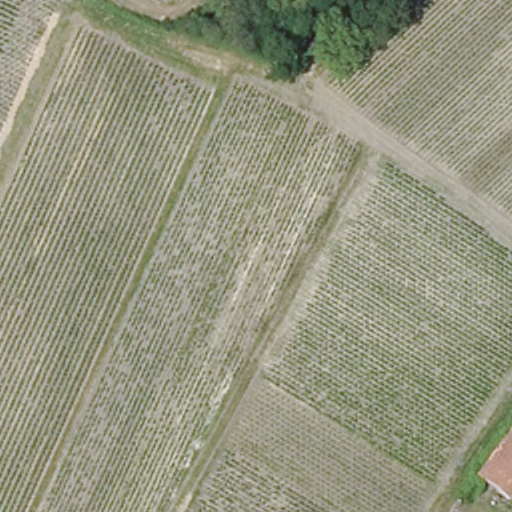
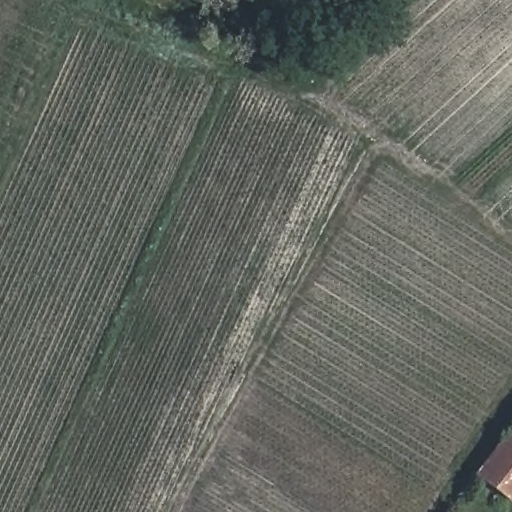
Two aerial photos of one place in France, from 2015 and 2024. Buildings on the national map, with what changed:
unchanged [(472,480),(512,425),(512,496),(506,504),(472,480)]

